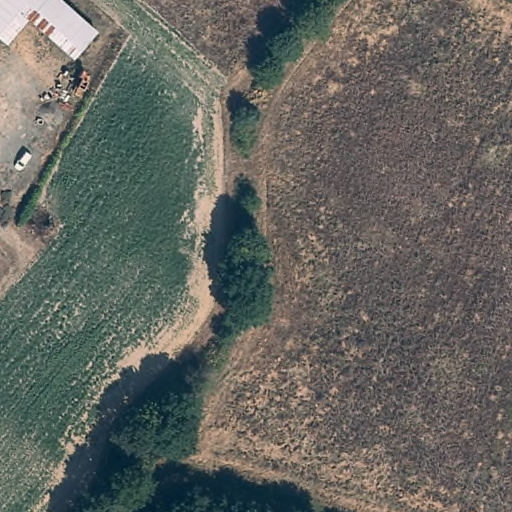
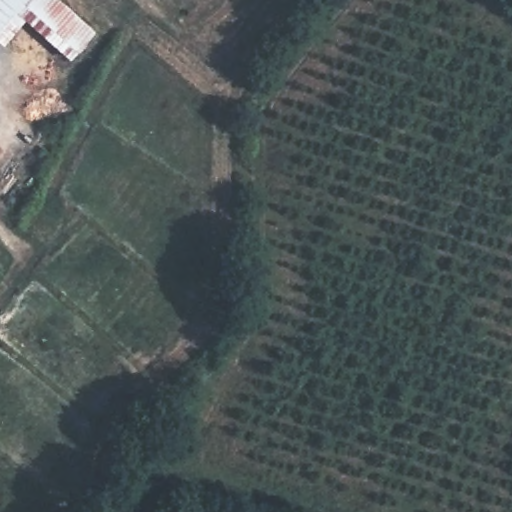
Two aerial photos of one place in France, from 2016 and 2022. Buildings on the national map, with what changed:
unchanged [(27,19),(5,45),(0,41),(0,0),(62,0),(97,30),(72,59),(27,19)]

